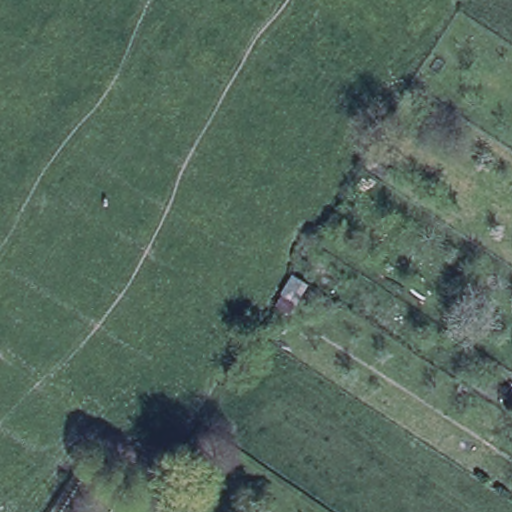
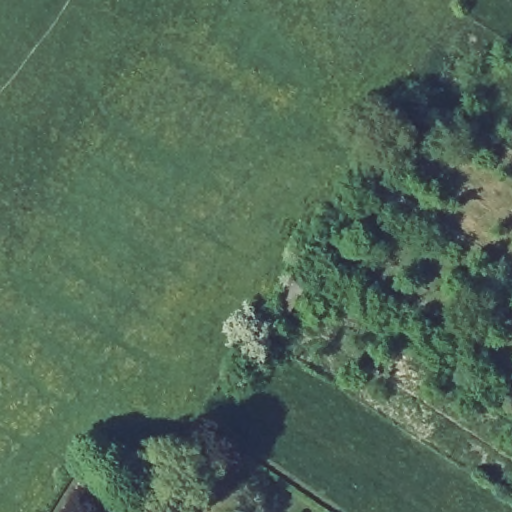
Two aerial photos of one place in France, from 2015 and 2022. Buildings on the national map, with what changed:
unchanged [(302,286),(291,304),(277,295),(288,278),(302,286)]

